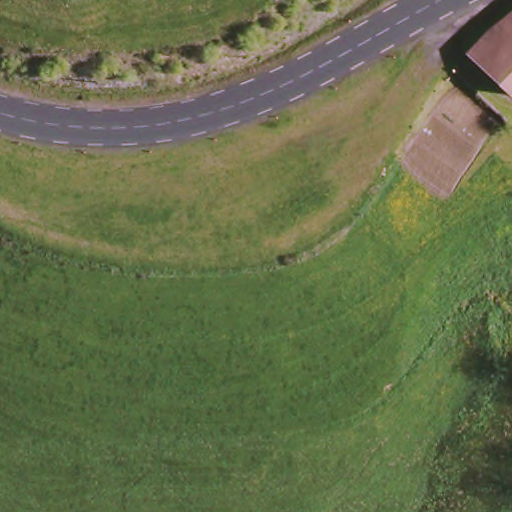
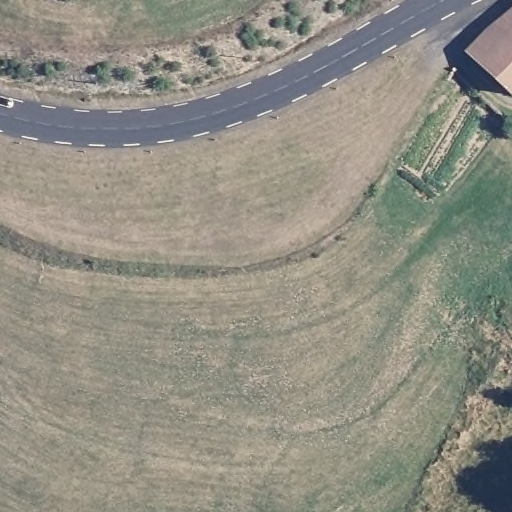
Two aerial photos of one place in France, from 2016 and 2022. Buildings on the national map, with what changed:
unchanged [(512,5),(512,79),(499,92),(461,44),(512,5)]

